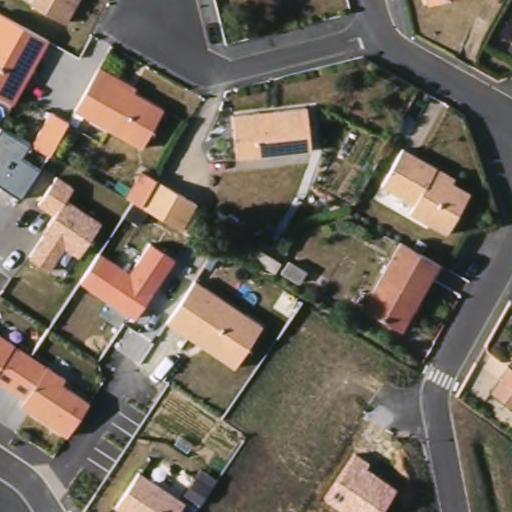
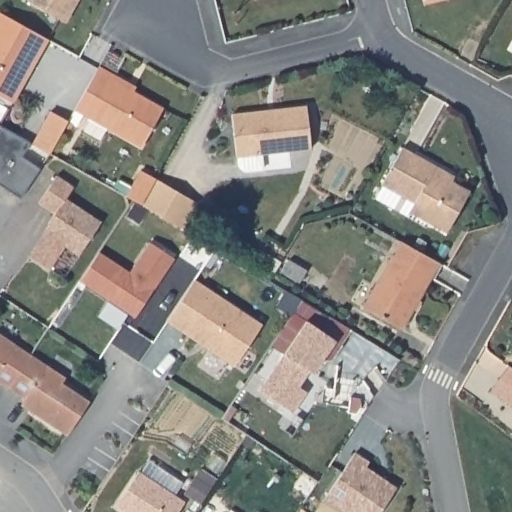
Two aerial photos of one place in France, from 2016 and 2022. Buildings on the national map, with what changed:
unchanged [(65,22),(31,4),(33,0),(77,0),(65,22)]
unchanged [(428,4),(427,0),(441,0),(428,4)]
unchanged [(48,40),(12,104),(0,97),(0,13),(48,40)]
unchanged [(116,76),(113,80),(163,109),(142,147),(75,110),(100,67),(116,76)]
unchanged [(32,144),(53,110),(74,124),(55,156),(32,144)]
unchanged [(306,111),(311,153),(236,162),(231,119),(306,111)]
unchanged [(0,182),(0,128),(30,145),(22,156),(39,169),(21,197),(0,182)]
unchanged [(469,191),(447,232),(408,211),(413,203),(381,185),(402,147),(436,166),(433,171),(469,191)]
unchanged [(128,196),(141,170),(197,200),(184,225),(128,196)]
unchanged [(31,255),(55,214),(40,203),(57,175),(75,186),(66,199),(101,220),(77,256),(66,248),(52,270),(31,255)]
unchanged [(82,282),(102,253),(131,270),(148,240),(176,256),(139,315),(82,282)]
unchanged [(438,262),(401,329),(362,307),(400,241),(438,262)]
unchanged [(307,270),(300,283),(281,272),(288,260),(307,270)]
unchanged [(170,323),(199,280),(266,324),(236,367),(170,323)]
new [(305,320),(334,340),(312,372),(307,370),(297,385),(305,391),(292,411),(258,390),(305,320)]
unchanged [(20,402),(24,397),(0,382),(0,333),(67,378),(64,386),(88,401),(66,436),(20,402)]
unchanged [(511,363),(512,364),(512,405),(491,391),(511,363)]
unchanged [(355,452),(369,461),(366,467),(397,488),(381,512),(346,512),(325,497),(355,452)]
unchanged [(141,471),(190,500),(181,512),(123,512),(117,508),(141,471)]

